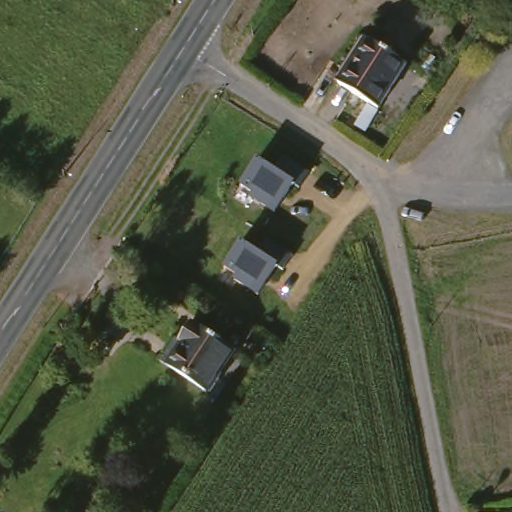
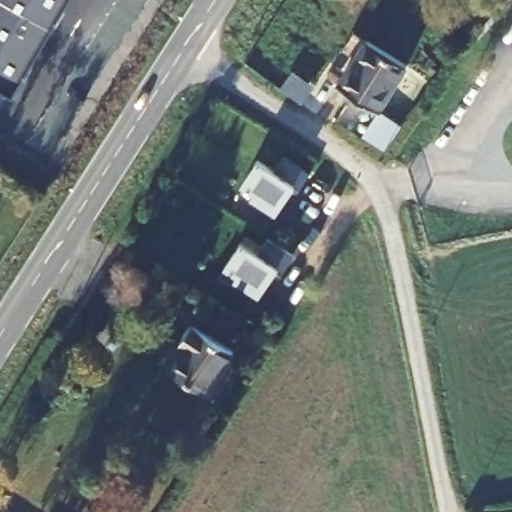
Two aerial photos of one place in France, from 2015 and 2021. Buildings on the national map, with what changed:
new [(71,0),(15,97),(0,88),(0,0),(71,0)]
unchanged [(383,104),(343,78),(370,36),(410,62),(383,104)]
unchanged [(257,159),(286,177),(293,165),(308,175),(300,188),(295,184),(275,214),(250,198),(252,192),(241,185),(257,159)]
unchanged [(257,295),(234,280),(236,275),(224,268),(241,241),(267,258),(276,247),(291,257),(282,270),(277,267),(257,295)]
unchanged [(213,400),(164,368),(182,342),(188,347),(199,330),(241,357),(213,400)]

